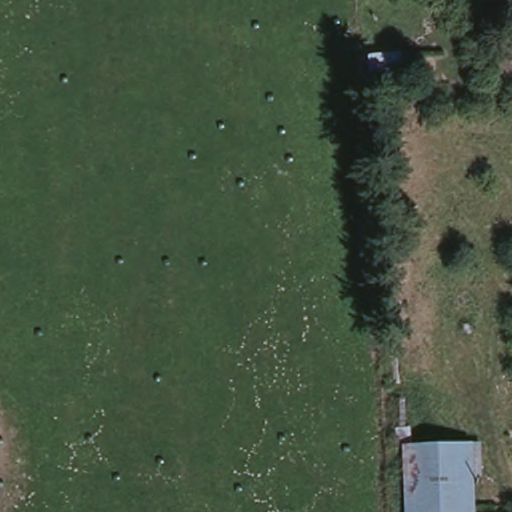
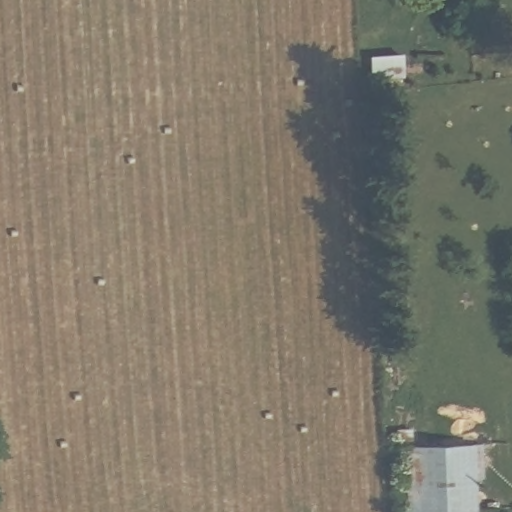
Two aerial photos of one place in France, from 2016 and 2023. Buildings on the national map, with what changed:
unchanged [(399,42),(401,63),(405,63),(405,80),(375,83),(371,46),(399,42)]
unchanged [(409,487),(407,448),(473,445),(475,484),(409,487)]
unchanged [(410,512),(409,487),(475,484),(477,512),(410,512)]

